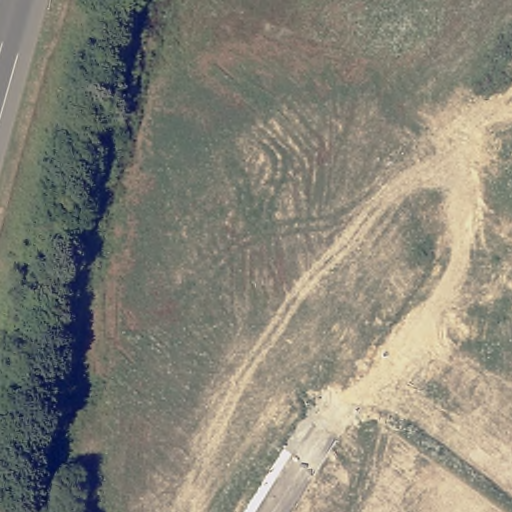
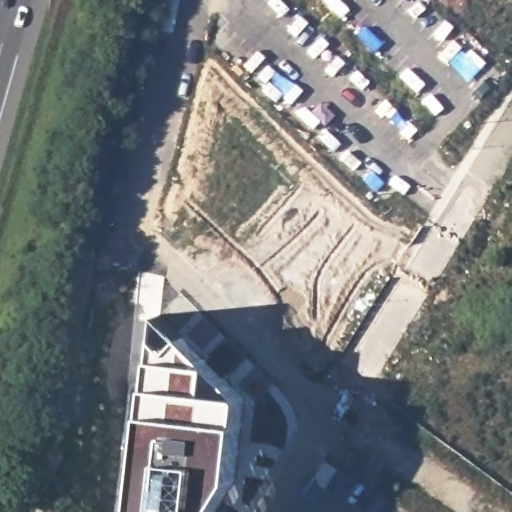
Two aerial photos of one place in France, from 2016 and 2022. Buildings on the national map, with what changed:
new [(247,482),(229,512),(121,512),(146,312),(251,397),(247,482)]

